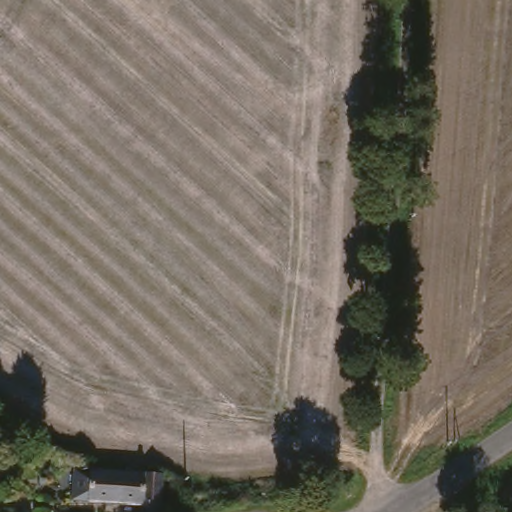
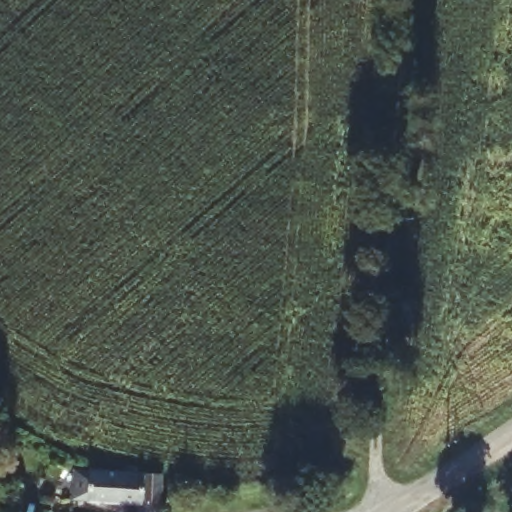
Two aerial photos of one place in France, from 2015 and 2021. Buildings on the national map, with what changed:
unchanged [(155,468),(158,495),(160,512),(138,512),(138,503),(87,506),(71,507),(67,474),(84,473),(155,468)]

